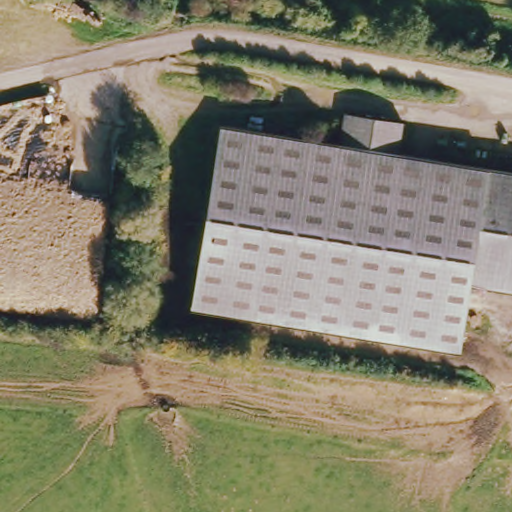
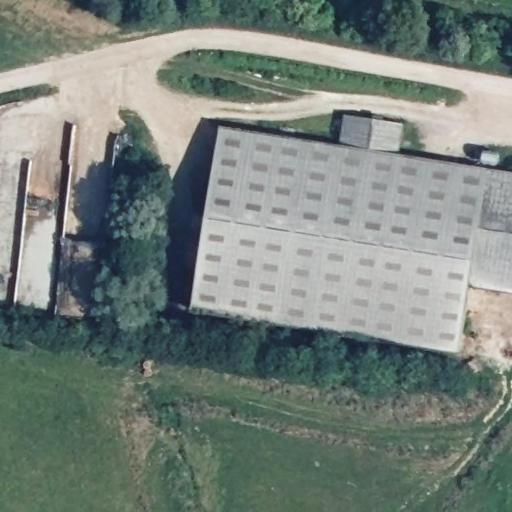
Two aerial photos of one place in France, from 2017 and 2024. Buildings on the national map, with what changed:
unchanged [(217,125),(335,140),(340,116),(403,124),(400,155),(512,171),(512,293),(467,286),(461,353),(190,312),(217,125)]

